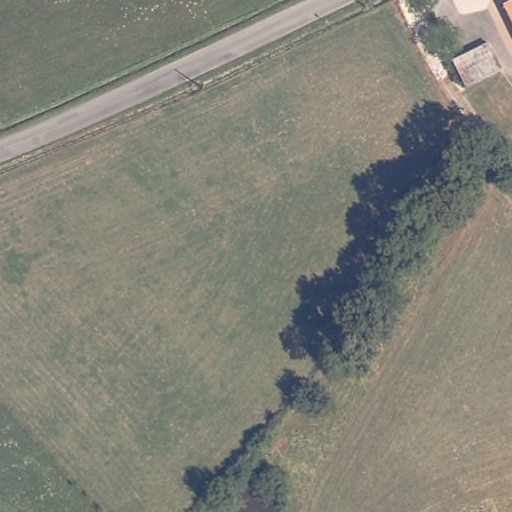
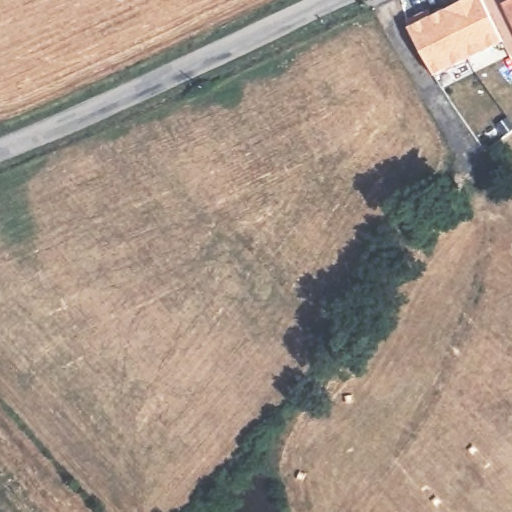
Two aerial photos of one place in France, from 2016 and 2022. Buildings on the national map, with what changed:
new [(455,1),(457,0),(481,0),(502,45),(469,61),(446,14),(458,8),(455,1)]
unchanged [(512,0),(512,23),(503,5),(512,0)]
new [(430,13),(434,20),(446,14),(469,61),(435,77),(407,24),(423,16),(430,13)]
demolished [(453,59),(486,44),(497,66),(462,80),(453,59)]

